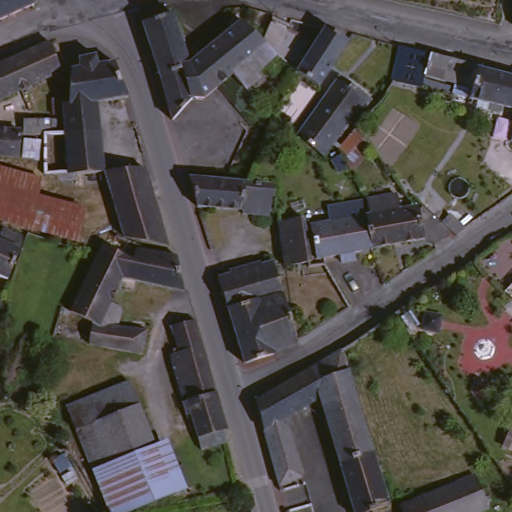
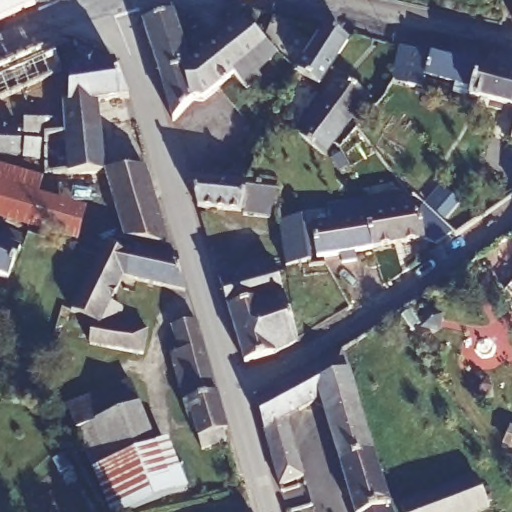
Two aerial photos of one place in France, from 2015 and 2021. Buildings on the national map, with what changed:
unchanged [(27,0),(29,5),(0,19),(0,0),(27,0)]
unchanged [(181,64),(198,51),(217,37),(222,33),(227,29),(237,22),(267,49),(272,53),(252,75),(257,80),(246,91),(245,93),(230,81),(199,107),(193,102),(173,113),(164,119),(160,106),(143,49),(136,22),(165,13),(175,41),(181,64)]
unchanged [(512,15),(512,30),(511,30),(512,15)]
unchanged [(341,40),(316,82),(314,85),(300,77),(293,72),(320,28),(341,40)]
unchanged [(57,79),(0,106),(0,71),(47,49),(57,79)]
unchanged [(512,153),(498,144),(511,115),(470,109),(463,89),(422,80),(419,90),(389,85),(400,51),(512,79),(512,153)]
unchanged [(98,67),(114,63),(125,99),(95,105),(100,175),(66,176),(66,135),(66,107),(70,107),(69,101),(72,100),(72,73),(81,71),(80,61),(96,57),(98,67)]
unchanged [(367,101),(351,124),(347,121),(326,148),(318,157),(317,156),(307,149),(299,141),(293,136),(333,78),(367,101)]
unchanged [(57,135),(47,135),(24,135),(24,123),(57,123),(57,135)]
unchanged [(18,134),(20,134),(19,158),(0,157),(0,130),(18,131),(18,134)]
unchanged [(74,247),(1,225),(0,224),(0,165),(33,174),(28,196),(83,212),(74,247)]
unchanged [(164,248),(126,241),(102,175),(143,172),(164,248)]
unchanged [(262,212),(255,212),(255,216),(229,214),(228,211),(195,209),(186,179),(211,180),(242,182),(244,182),(268,184),(275,184),(272,213),(278,212),(279,224),(283,223),(302,218),(309,266),(321,265),(327,275),(312,277),(304,277),(301,278),(297,262),(290,262),(282,261),(270,262),(269,254),(262,212)]
unchanged [(412,198),(409,199),(406,199),(401,191),(409,190),(412,198)]
unchanged [(370,249),(365,217),(368,217),(366,203),(365,200),(394,196),(397,212),(419,208),(441,226),(448,231),(433,244),(421,241),(370,250),(370,249)]
unchanged [(315,260),(309,227),(343,221),(341,206),(366,203),(368,217),(365,217),(370,249),(370,250),(315,260)]
unchanged [(0,278),(0,242),(4,229),(26,238),(21,250),(9,281),(0,278)]
unchanged [(166,257),(173,258),(176,273),(180,289),(131,280),(128,290),(112,286),(105,302),(117,306),(111,324),(125,326),(126,318),(142,320),(141,329),(145,329),(139,355),(89,347),(93,325),(72,317),(97,260),(102,249),(109,253),(124,259),(129,250),(166,257)]
unchanged [(270,357),(241,365),(216,279),(270,262),(294,341),(270,357)]
unchanged [(512,281),(512,303),(501,292),(512,281)]
unchanged [(218,421),(213,422),(217,435),(192,442),(178,392),(183,390),(163,317),(185,310),(218,421)]
unchanged [(386,508),(388,512),(354,512),(353,510),(323,406),(289,427),(304,484),(283,494),(258,407),(343,357),(386,508)]
unchanged [(141,412),(77,436),(67,411),(131,387),(141,412)]
unchanged [(164,475),(176,471),(184,494),(136,512),(105,512),(77,436),(141,412),(164,475)]
unchanged [(486,512),(402,512),(473,484),(486,512)]

